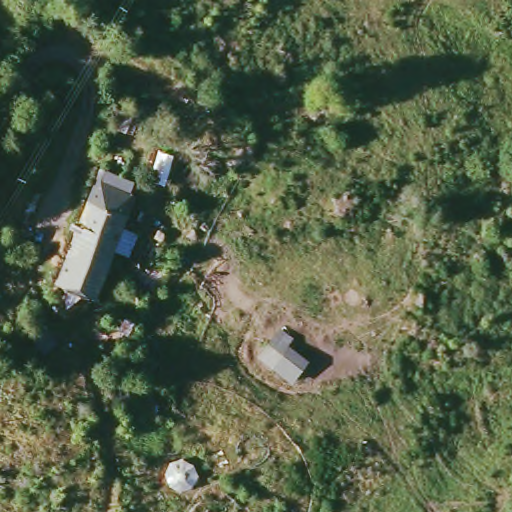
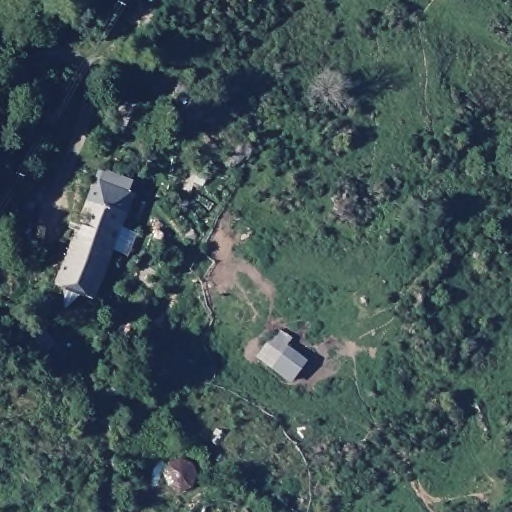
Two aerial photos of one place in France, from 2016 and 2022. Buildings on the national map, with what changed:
unchanged [(131,187),(127,200),(133,202),(91,306),(53,291),(93,188),(98,189),(104,177),(131,187)]
unchanged [(267,374),(251,360),(273,332),(289,343),(284,354),(301,366),(288,384),(267,374)]

